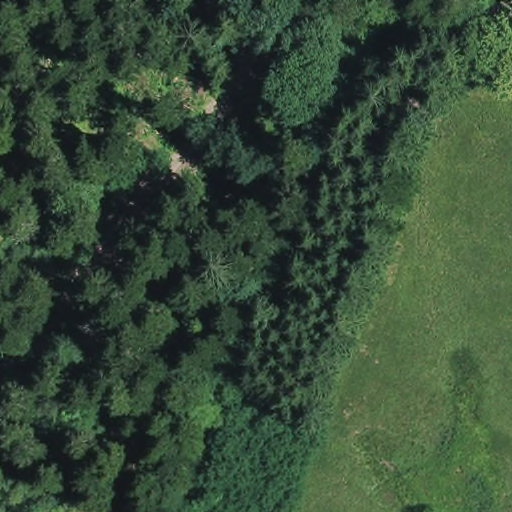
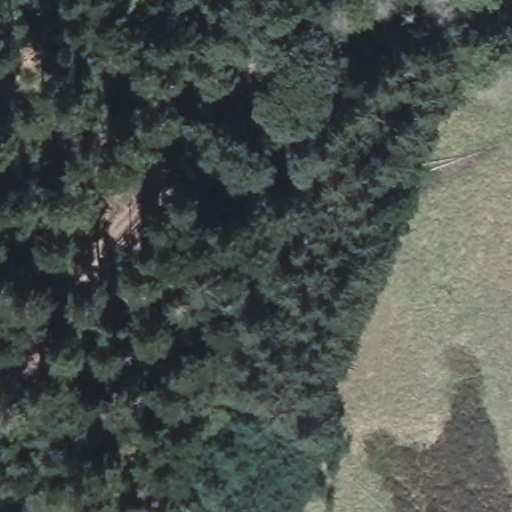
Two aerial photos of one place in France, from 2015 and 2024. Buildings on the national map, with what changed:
unchanged [(509,0),(511,0),(510,1),(509,0)]

